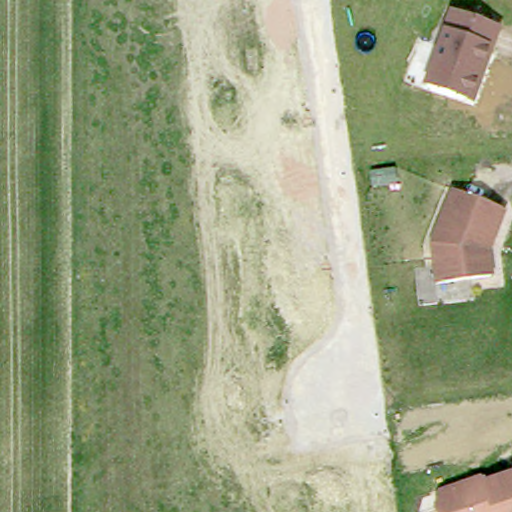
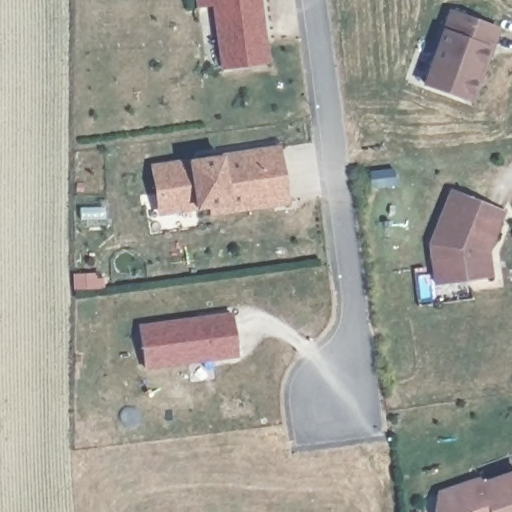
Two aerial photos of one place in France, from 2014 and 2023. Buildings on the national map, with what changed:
new [(197,0),(261,0),(269,64),(221,70),(212,5),(197,7),(197,0)]
unchanged [(499,24),(472,103),(423,85),(449,6),(499,24)]
new [(186,158),(222,152),(279,144),(288,203),(209,215),(208,207),(194,209),(158,214),(150,163),(186,158)]
unchanged [(483,256),(486,277),(431,285),(426,245),(447,191),(499,211),(485,245),(481,243),(477,251),(478,257),(483,256)]
new [(237,357),(145,369),(138,323),(232,311),(237,357)]
unchanged [(433,508),(442,505),(437,488),(477,474),(478,479),(512,467),(512,512),(434,512),(433,508)]

